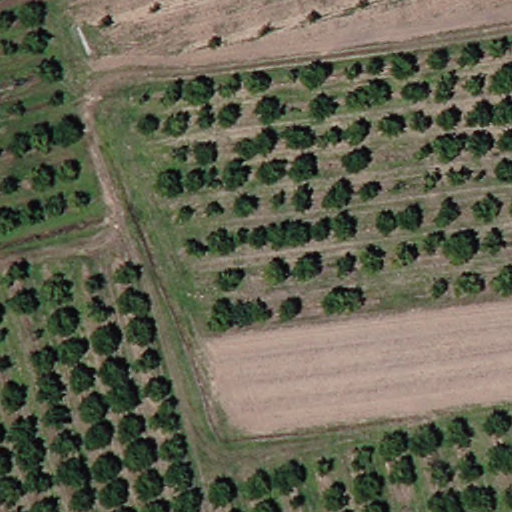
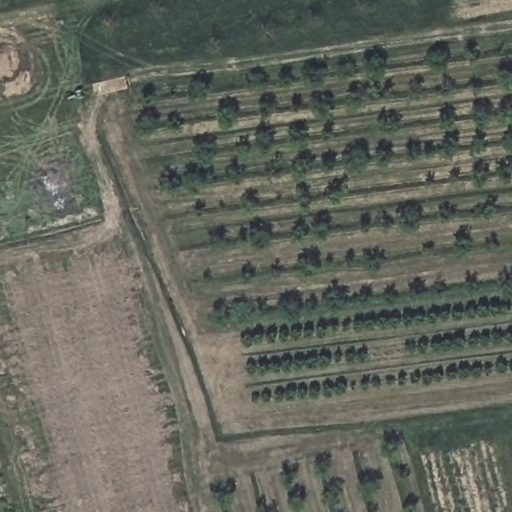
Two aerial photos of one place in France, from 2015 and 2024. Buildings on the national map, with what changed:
[]

